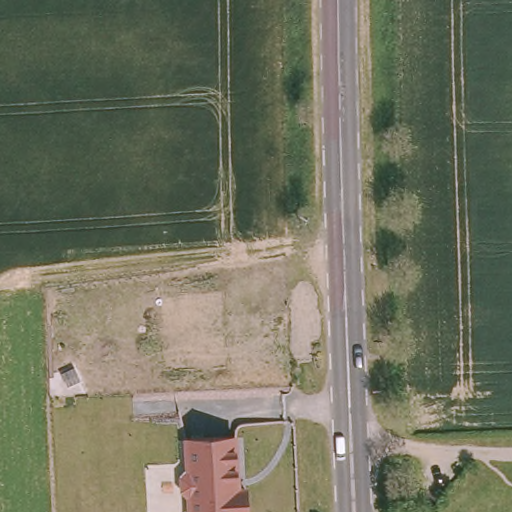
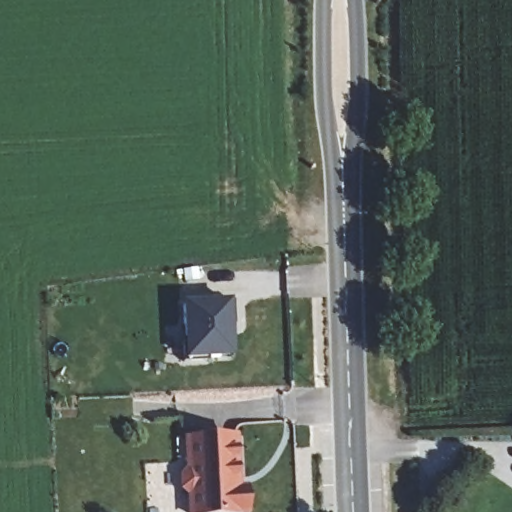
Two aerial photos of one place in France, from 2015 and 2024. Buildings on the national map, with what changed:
new [(229,300),(230,303),(233,303),(234,324),(231,325),(232,359),(183,360),(181,302),(229,300)]
unchanged [(237,476),(234,476),(235,491),(246,491),(246,512),(189,512),(188,498),(183,491),(183,478),(187,471),(186,442),(236,439),(237,476)]

